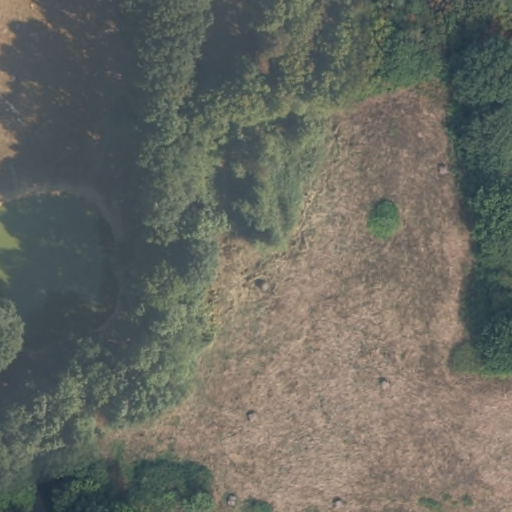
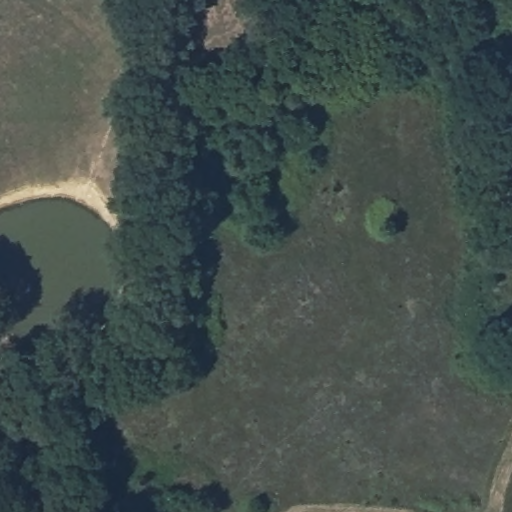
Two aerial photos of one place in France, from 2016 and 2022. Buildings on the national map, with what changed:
[]

